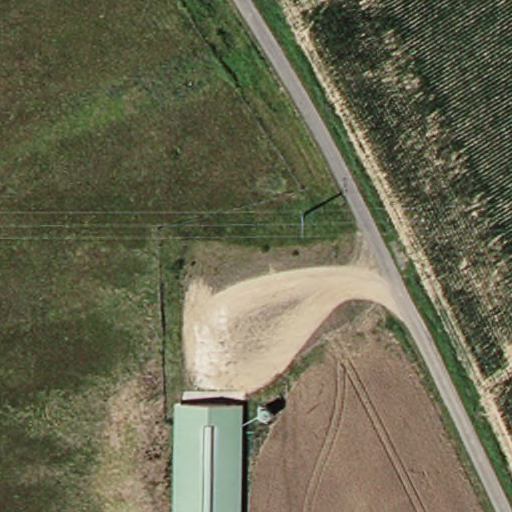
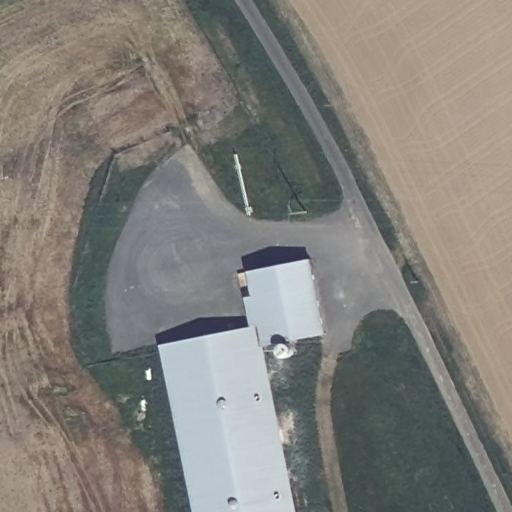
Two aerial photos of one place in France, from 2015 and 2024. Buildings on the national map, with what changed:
new [(312,259),(327,335),(265,347),(299,512),(197,512),(163,346),(253,326),(248,299),(255,297),(250,272),(312,259)]
demolished [(228,399),(227,512),(173,512),(174,398),(228,399)]

